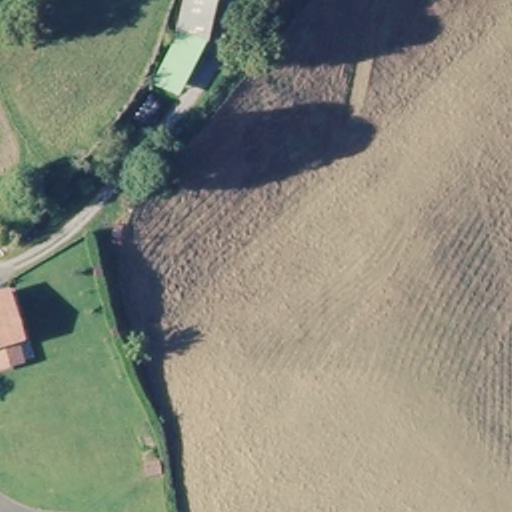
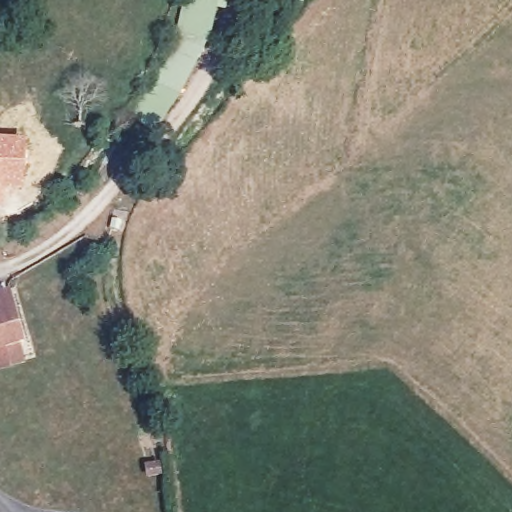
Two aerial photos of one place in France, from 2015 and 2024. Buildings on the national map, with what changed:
unchanged [(177,98),(149,84),(167,45),(178,0),(219,0),(208,46),(177,98)]
new [(23,188),(4,187),(3,208),(0,208),(0,136),(27,138),(23,188)]
unchanged [(2,296),(16,342),(0,347),(0,297),(2,296)]
unchanged [(25,366),(0,375),(0,348),(22,341),(25,366)]

